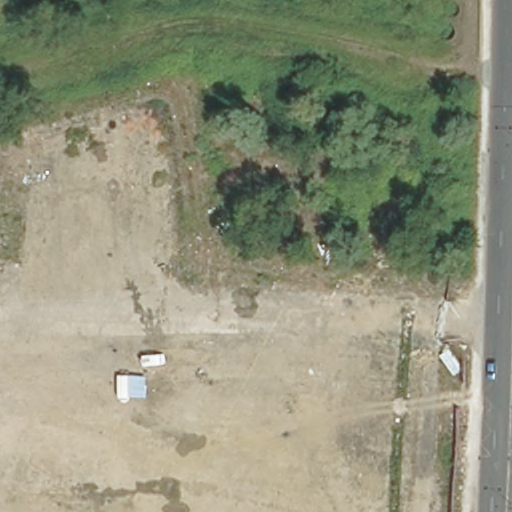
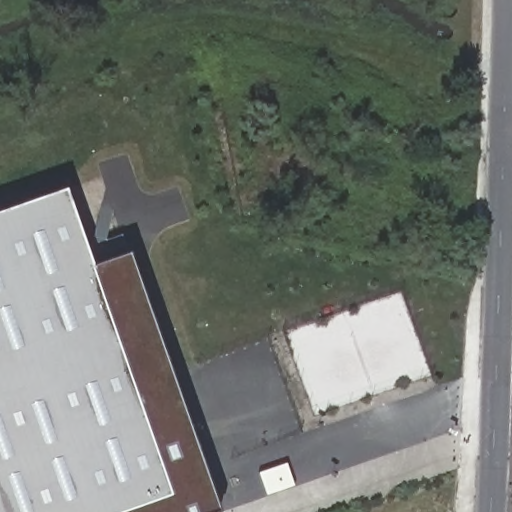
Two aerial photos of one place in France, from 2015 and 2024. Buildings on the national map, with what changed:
new [(129,254),(219,512),(0,512),(0,213),(65,191),(91,267),(129,254)]

